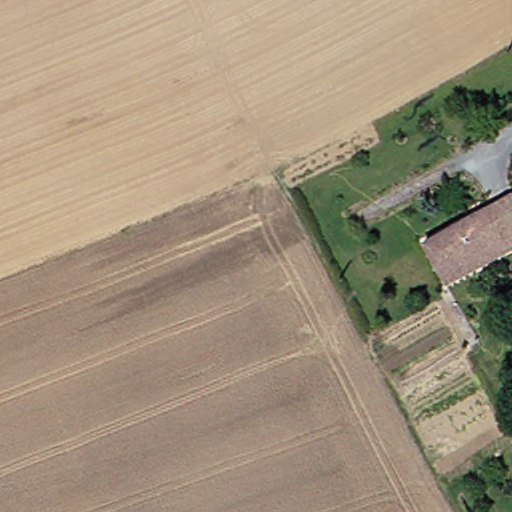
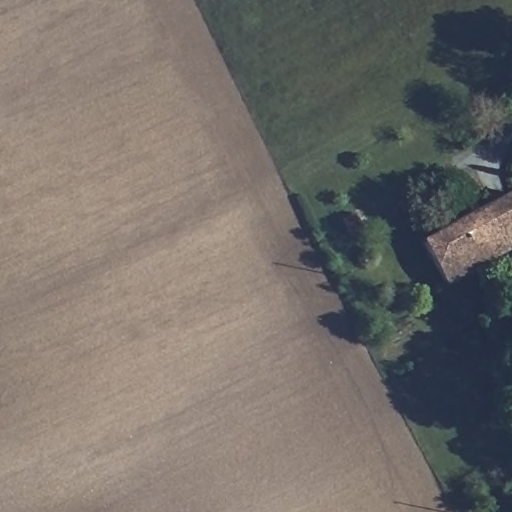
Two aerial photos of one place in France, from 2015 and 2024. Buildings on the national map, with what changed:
unchanged [(424,246),(512,199),(512,253),(446,287),(424,246)]

